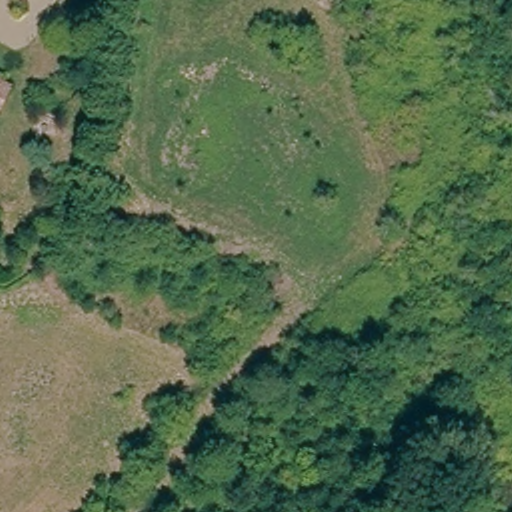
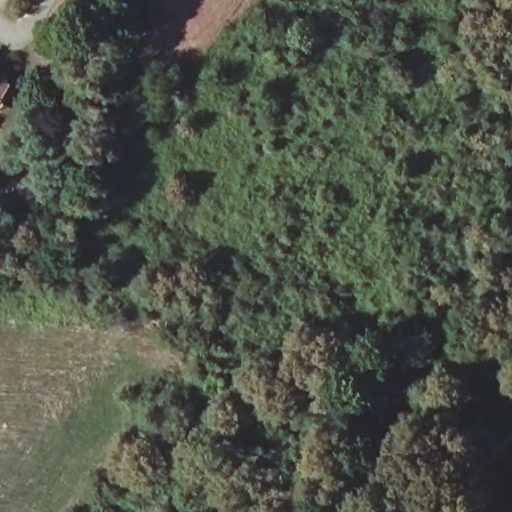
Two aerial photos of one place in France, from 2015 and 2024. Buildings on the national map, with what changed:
[]

